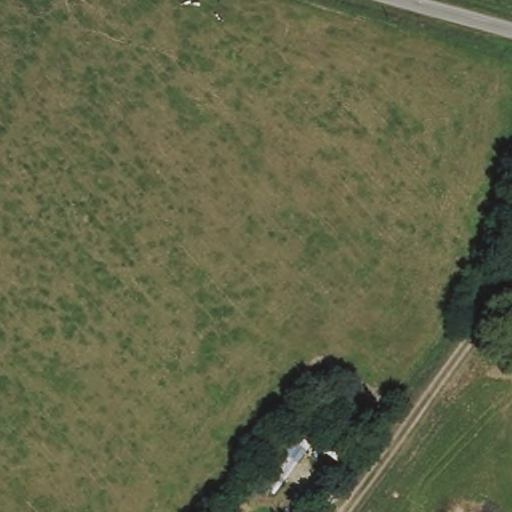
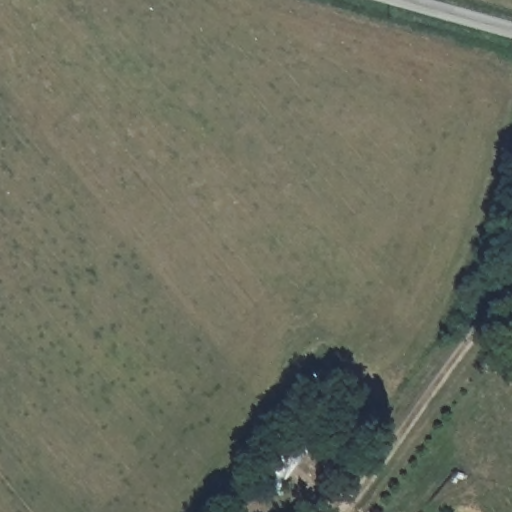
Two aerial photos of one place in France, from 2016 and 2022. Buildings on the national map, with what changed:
unchanged [(296,456),(291,462),(299,468),(281,491),(254,473),(276,441),(296,456)]

